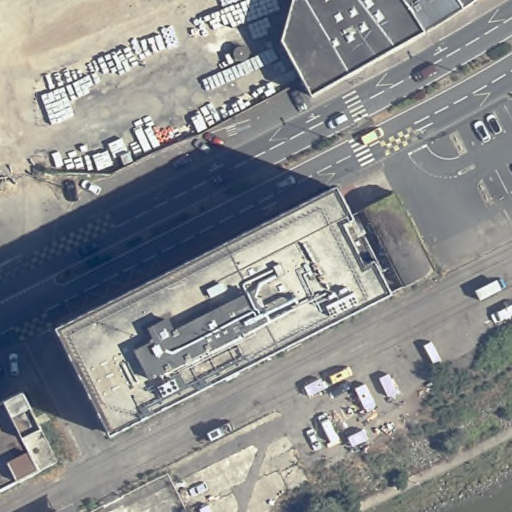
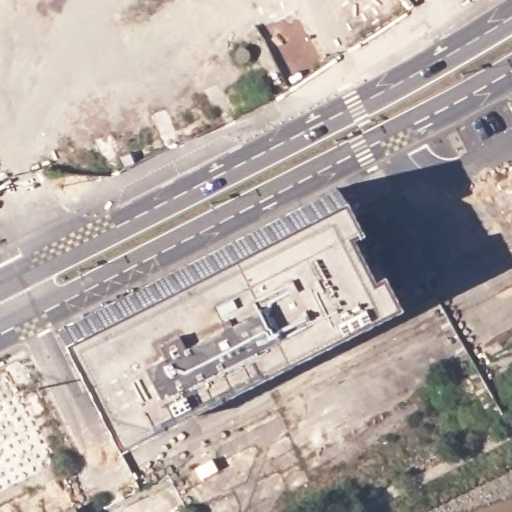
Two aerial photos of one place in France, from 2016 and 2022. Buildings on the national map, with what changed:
demolished [(303,75),(281,36),(291,0),(406,0),(410,3),(426,28),(312,92),(303,75)]
demolished [(463,4),(460,0),(469,0),(463,4)]
unchanged [(60,331),(341,190),(355,217),(74,356),(60,331)]
unchanged [(370,210),(399,195),(438,273),(408,288),(370,210)]
unchanged [(355,217),(357,220),(394,295),(126,430),(114,435),(74,356),(355,217)]
demolished [(67,462),(0,496),(0,407),(32,390),(67,462)]

